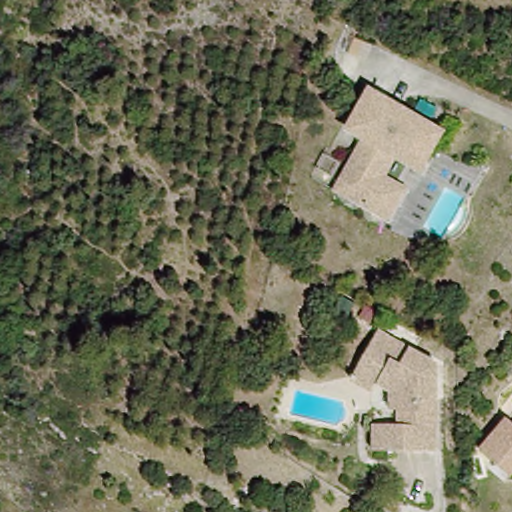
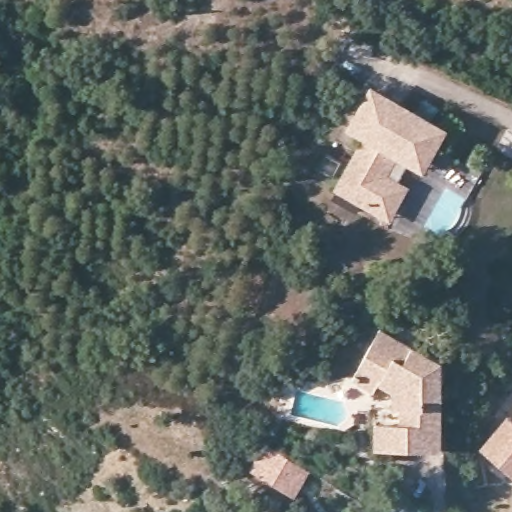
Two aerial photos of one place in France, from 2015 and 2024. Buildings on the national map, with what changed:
unchanged [(375,212),(364,206),(330,183),(348,156),(361,136),(343,126),(370,91),(426,126),(436,133),(414,168),(403,161),(384,151),(371,173),(382,180),(394,188),(375,212)]
unchanged [(438,363),(439,450),(378,451),(377,425),(401,425),(404,411),(394,410),(395,387),(379,376),(373,383),(351,371),(360,357),(380,326),(438,363)]
unchanged [(508,474),(479,449),(506,415),(512,421),(512,470),(508,474)]
new [(262,439),(304,467),(311,471),(294,497),(244,465),(248,461),(262,439)]

